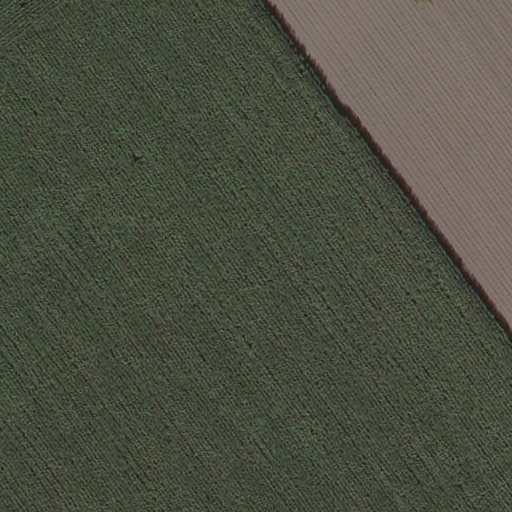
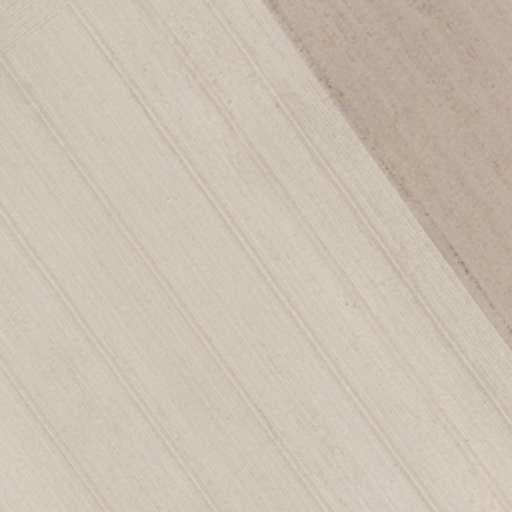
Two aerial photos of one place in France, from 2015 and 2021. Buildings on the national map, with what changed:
[]

